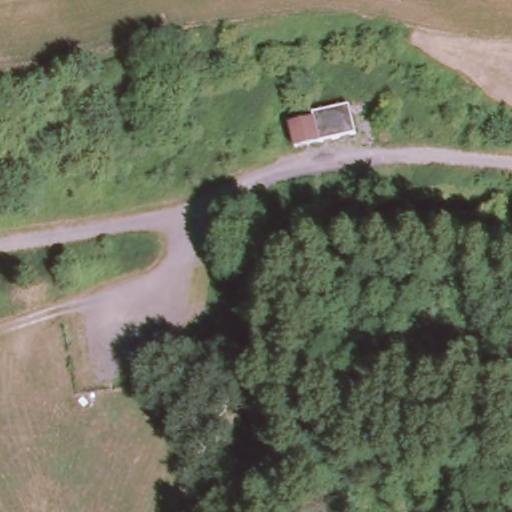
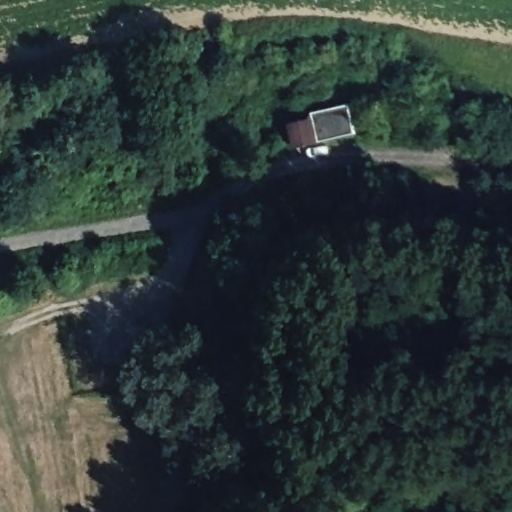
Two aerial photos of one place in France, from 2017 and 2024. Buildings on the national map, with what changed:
unchanged [(293,147),(288,122),(314,117),(313,112),(350,107),(355,136),(322,143),(293,147)]

